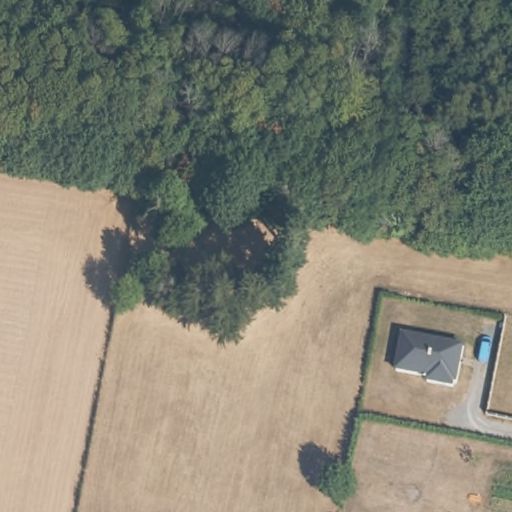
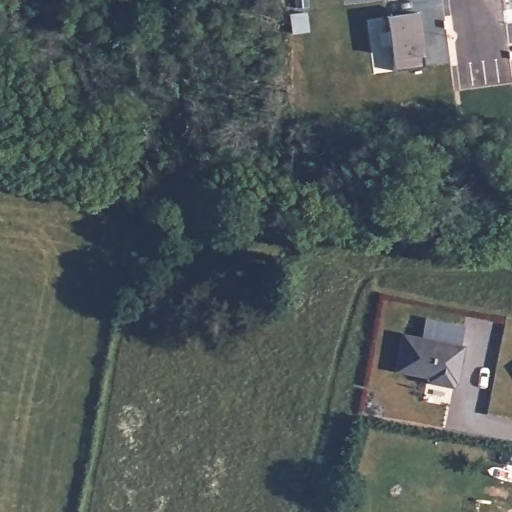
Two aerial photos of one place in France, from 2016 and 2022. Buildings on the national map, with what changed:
new [(425,66),(393,71),(387,16),(419,11),(425,66)]
unchanged [(466,342),(460,389),(425,384),(427,378),(392,371),(397,330),(466,342)]

